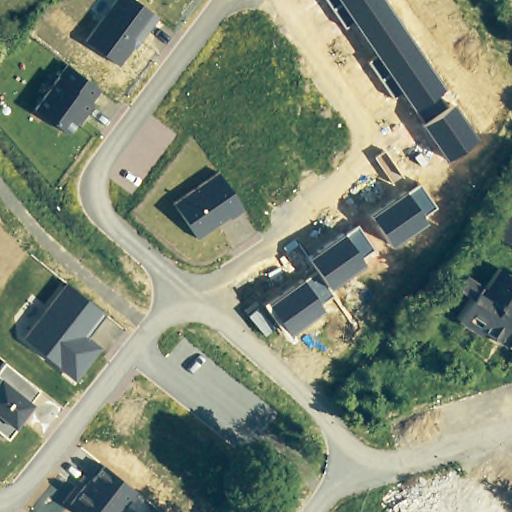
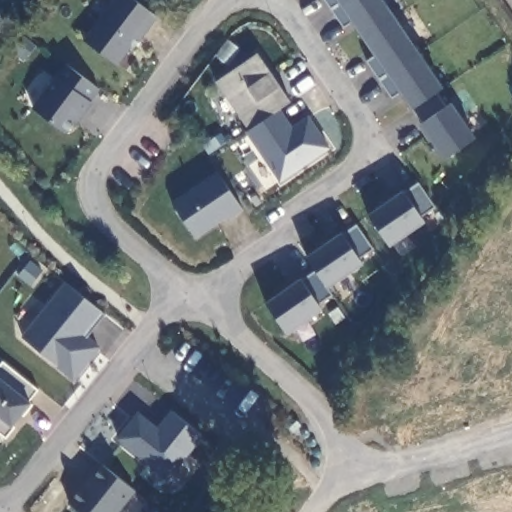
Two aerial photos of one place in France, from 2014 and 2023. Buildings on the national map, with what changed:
unchanged [(114,0),(135,0),(156,15),(134,46),(130,46),(117,64),(85,40),(114,0)]
unchanged [(325,0),(383,0),(442,87),(475,139),(445,158),(400,91),(392,99),(367,60),(376,55),(352,20),(343,26),(325,0)]
new [(290,99),(248,128),(215,81),(258,52),(290,99)]
unchanged [(66,64),(100,88),(91,100),(93,104),(79,122),(75,121),(67,133),(34,107),(66,64)]
new [(281,105),(293,125),(312,115),(332,147),(280,180),(248,128),(281,105)]
unchanged [(217,172),(243,209),(229,217),(227,216),(195,237),(173,202),(217,172)]
unchanged [(403,190),(405,192),(417,185),(435,207),(420,215),(424,221),(390,244),(368,214),(403,190)]
demolished [(500,234),(491,227),(498,216),(503,209),(506,205),(512,208),(512,241),(500,234)]
unchanged [(316,270),(305,256),(340,232),(343,234),(357,225),(371,249),(358,256),(362,262),(327,286),(331,293),(317,303),(320,308),(283,333),(262,305),(316,270)]
demolished [(512,268),(512,340),(486,323),(485,325),(483,327),(459,312),(473,291),(472,291),(463,285),(459,282),(467,270),(488,283),(502,261),(512,268)]
unchanged [(65,283),(103,313),(85,335),(100,347),(73,378),(22,337),(65,283)]
unchanged [(0,365),(3,361),(37,388),(28,400),(30,402),(12,424),(16,425),(6,437),(0,432),(0,365)]
new [(169,478),(119,439),(139,408),(161,425),(173,408),(205,434),(169,478)]
unchanged [(90,480),(101,465),(136,492),(120,512),(82,512),(69,502),(87,478),(90,480)]
demolished [(447,493),(446,495),(468,508),(472,502),(483,510),(487,512),(400,512),(401,510),(388,502),(396,489),(418,503),(431,482),(432,483),(447,493)]

